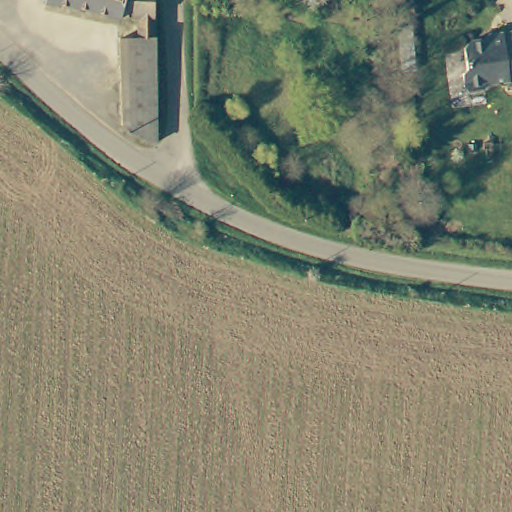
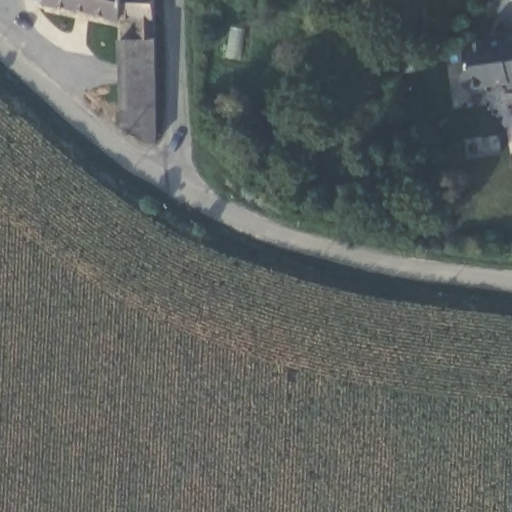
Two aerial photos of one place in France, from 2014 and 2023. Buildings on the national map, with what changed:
unchanged [(121,11),(46,0),(153,0),(153,35),(154,59),(155,94),(157,134),(152,132),(121,121),(121,34),(139,33),(139,12),(121,10),(121,11)]
unchanged [(510,38),(512,63),(512,86),(491,89),(490,84),(472,85),(467,90),(452,92),(447,87),(446,75),(450,70),(448,50),(453,44),(473,42),(472,37),(509,33),(510,38)]
unchanged [(512,38),(512,63),(510,38),(512,38)]
unchanged [(398,147),(402,210),(376,210),(373,149),(398,147)]

